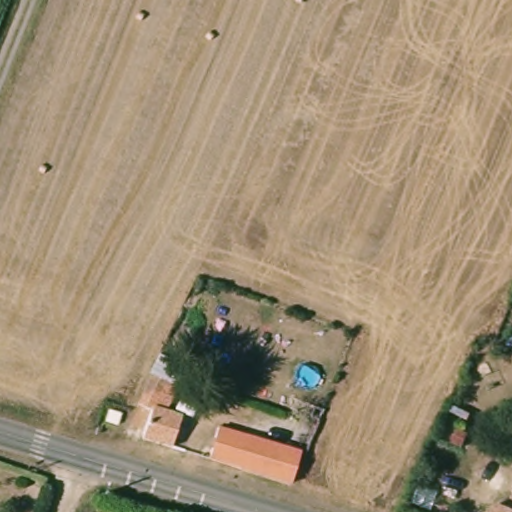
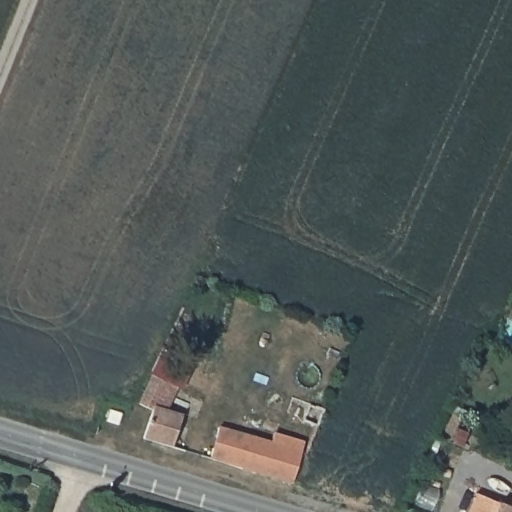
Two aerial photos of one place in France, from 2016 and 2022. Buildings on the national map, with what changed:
unchanged [(138,407),(150,381),(167,388),(157,413),(181,422),(173,453),(140,443),(151,411),(138,407)]
unchanged [(290,407),(294,399),(324,412),(318,425),(305,420),(307,415),(290,407)]
unchanged [(299,455),(291,482),(209,459),(218,428),(299,455)]
unchanged [(510,510),(512,507),(512,512),(497,512),(500,505),(510,510)]

